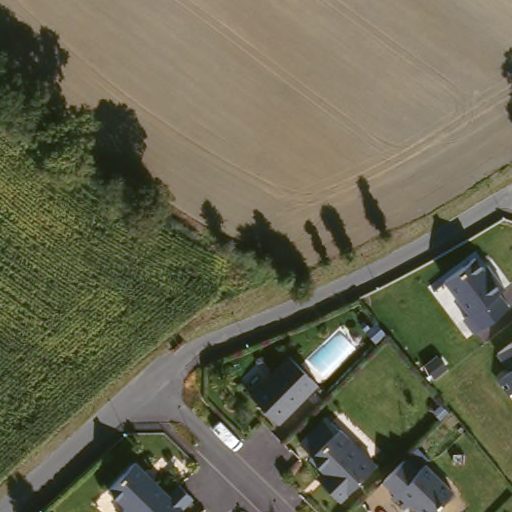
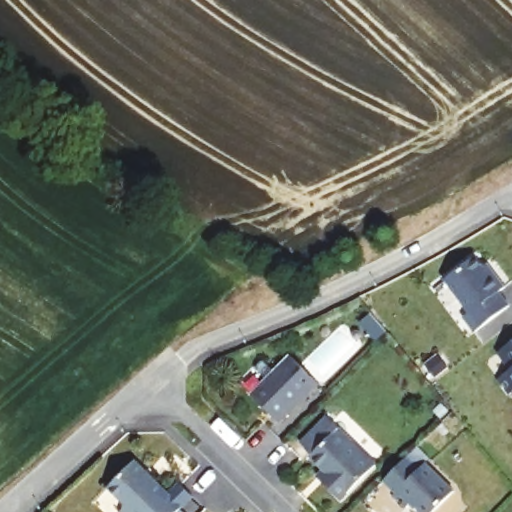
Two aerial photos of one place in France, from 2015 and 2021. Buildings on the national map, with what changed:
unchanged [(462,315),(468,312),(446,279),(474,258),(485,266),(488,265),(505,289),(499,293),(508,306),(475,333),(462,315)]
unchanged [(497,372),(509,362),(496,346),(512,334),(512,384),(508,386),(497,372)]
unchanged [(319,376),(281,415),(252,387),(291,348),(319,376)]
unchanged [(337,496),(322,482),(329,475),(307,453),(309,451),(297,440),(323,414),(372,461),(337,496)]
unchanged [(120,502),(121,496),(105,481),(132,455),(166,489),(177,478),(190,491),(177,503),(186,512),(123,512),(116,505),(120,502)]
unchanged [(451,487),(426,512),(422,512),(408,498),(403,504),(390,492),(393,489),(381,477),(403,455),(416,466),(422,460),(451,487)]

